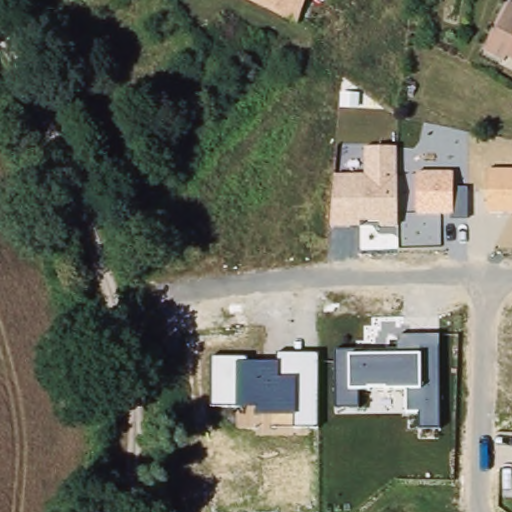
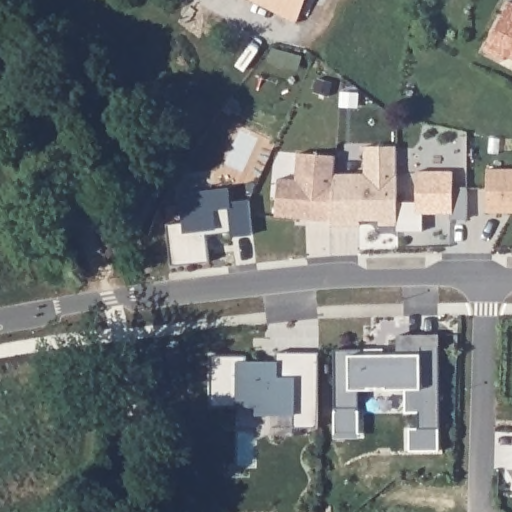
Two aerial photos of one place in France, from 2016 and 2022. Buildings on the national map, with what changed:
unchanged [(297,24),(250,0),(306,0),(297,24)]
unchanged [(506,57),(504,62),(484,52),(504,14),(509,3),(512,4),(512,60),(506,57)]
new [(318,79),(332,83),(328,96),(314,93),(318,79)]
unchanged [(336,175),(366,174),(365,147),(398,146),(398,226),(380,226),(381,220),(360,220),(360,227),(332,227),(336,175)]
new [(277,179),(295,181),(297,154),(335,157),(330,222),(274,217),(277,179)]
unchanged [(488,169),(512,170),(512,213),(488,213),(488,169)]
unchanged [(417,172),(453,172),(454,188),(469,188),(469,220),(452,220),(452,214),(417,215),(417,172)]
new [(209,265),(170,269),(166,227),(183,226),(180,197),(228,192),(229,206),(249,204),(252,237),(232,240),(231,236),(221,237),(206,238),(209,265)]
unchanged [(336,351),(398,350),(398,336),(440,336),(441,428),(420,429),(419,413),(406,413),(406,389),(359,389),(358,407),(336,407),(336,351)]
unchanged [(212,357),(247,357),(247,362),(278,361),(278,354),(319,355),(318,427),(273,427),(273,416),(256,416),(256,406),(214,405),(212,357)]

